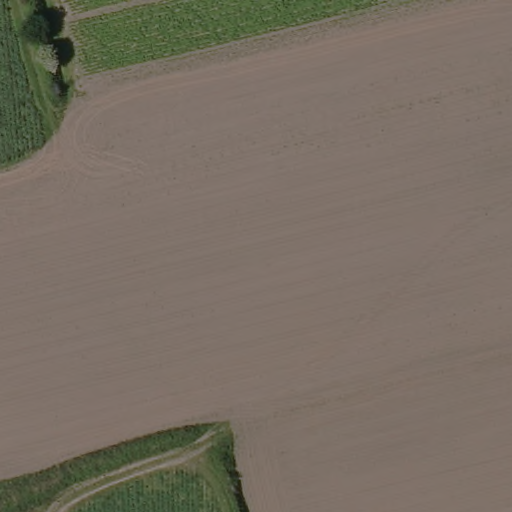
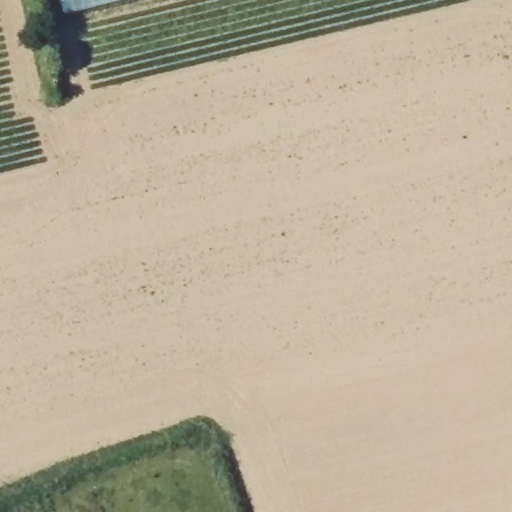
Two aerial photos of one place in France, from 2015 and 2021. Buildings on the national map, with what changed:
new [(64,13),(61,0),(117,0),(64,13)]

